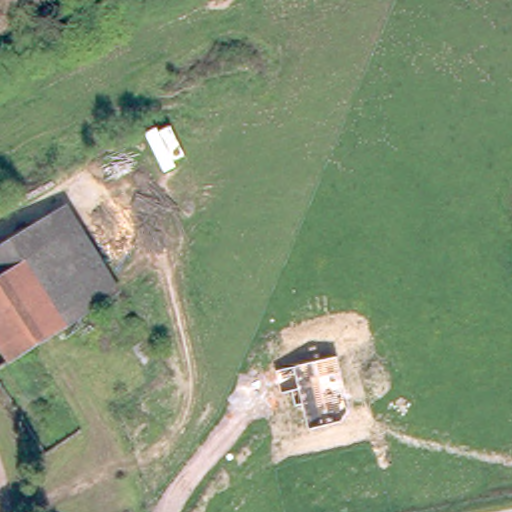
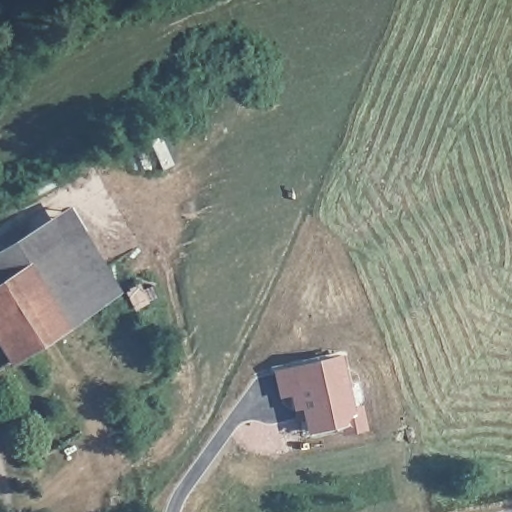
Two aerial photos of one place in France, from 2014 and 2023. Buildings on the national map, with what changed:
unchanged [(72,325),(71,332),(19,365),(16,364),(0,339),(0,284),(7,280),(0,268),(0,255),(70,212),(74,210),(122,294),(72,325)]
new [(272,368),(341,352),(353,405),(364,402),(369,428),(341,434),(340,426),(307,433),(302,408),(293,410),(291,394),(279,398),(272,368)]

